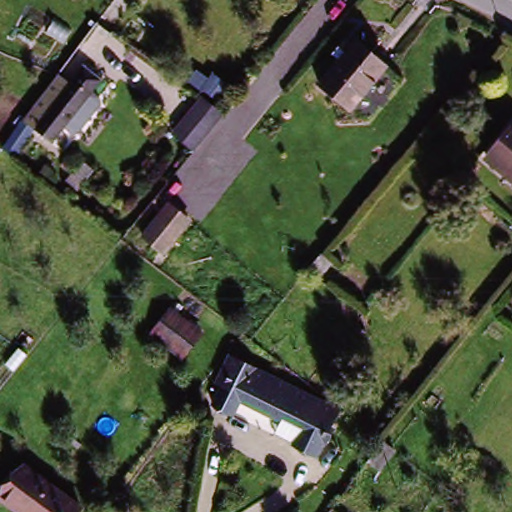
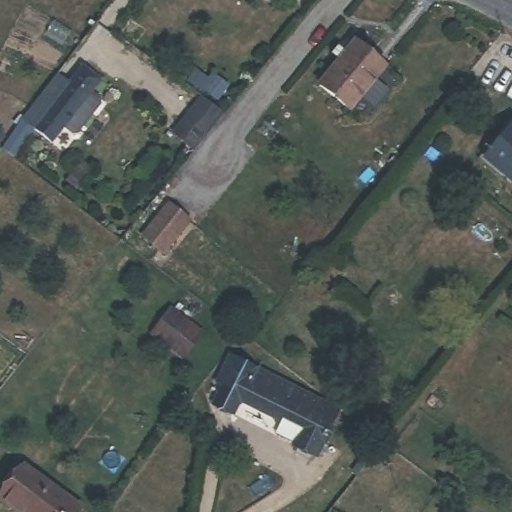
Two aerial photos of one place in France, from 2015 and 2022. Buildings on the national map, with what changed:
unchanged [(356,111),(328,88),(345,66),(337,60),(343,51),(352,57),(362,45),(392,70),(356,111)]
unchanged [(105,81),(57,143),(40,130),(27,120),(60,76),(73,86),(87,68),(105,81)]
unchanged [(202,104),(223,120),(213,133),(195,156),(173,140),(202,104)]
unchanged [(512,142),(512,174),(497,162),(512,142)]
unchanged [(191,226),(165,256),(145,240),(171,209),(191,226)]
unchanged [(185,360),(152,336),(175,309),(207,333),(185,360)]
unchanged [(345,412),(330,445),(321,440),(314,455),(272,432),(278,420),(247,403),(240,416),(220,406),(227,393),(222,391),(239,360),(345,412)]
unchanged [(83,512),(33,512),(7,492),(32,462),(87,506),(83,512)]

